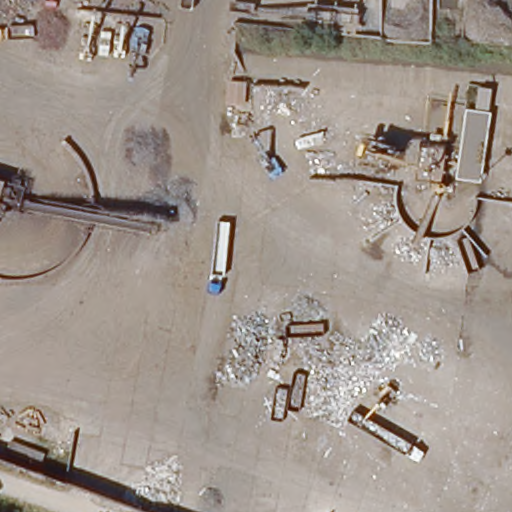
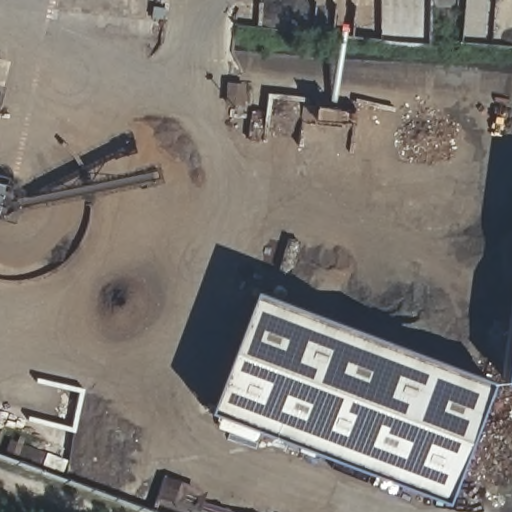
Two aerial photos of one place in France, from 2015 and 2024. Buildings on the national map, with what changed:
new [(0,58),(11,61),(3,89),(0,88),(0,58)]
unchanged [(490,111),(479,182),(451,177),(462,107),(490,111)]
new [(443,497),(206,407),(252,286),(490,376),(443,497)]
new [(502,377),(512,304),(512,379),(502,377)]

